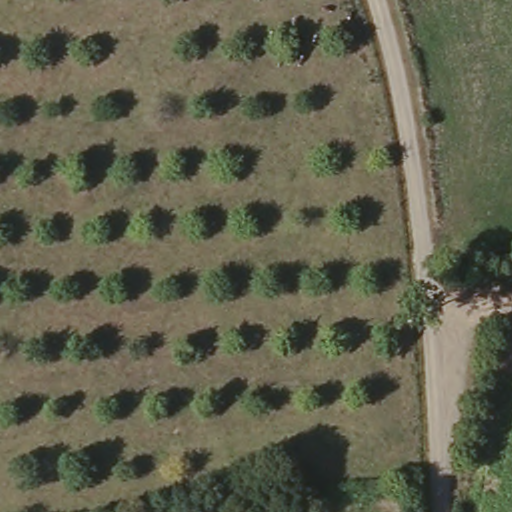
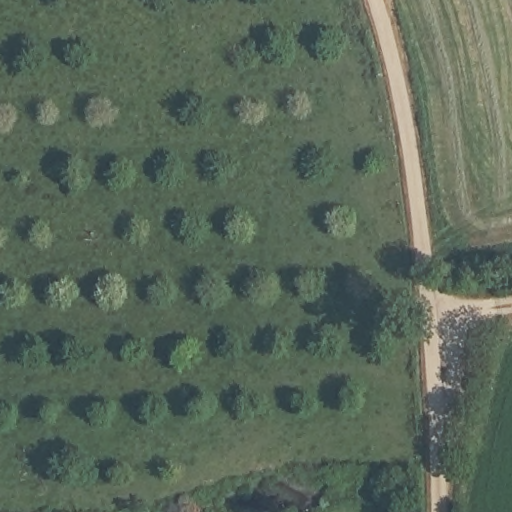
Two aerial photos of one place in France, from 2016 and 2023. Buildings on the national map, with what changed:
[]

